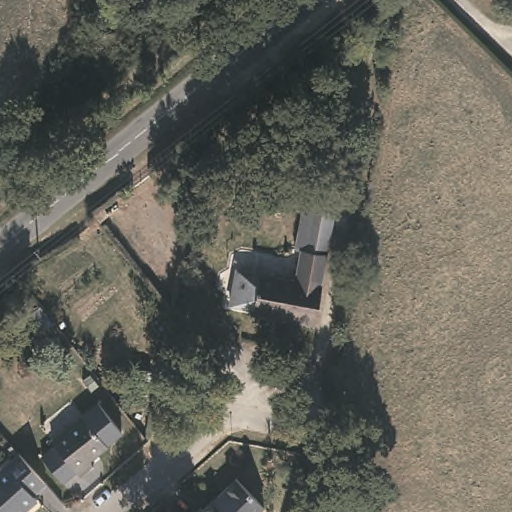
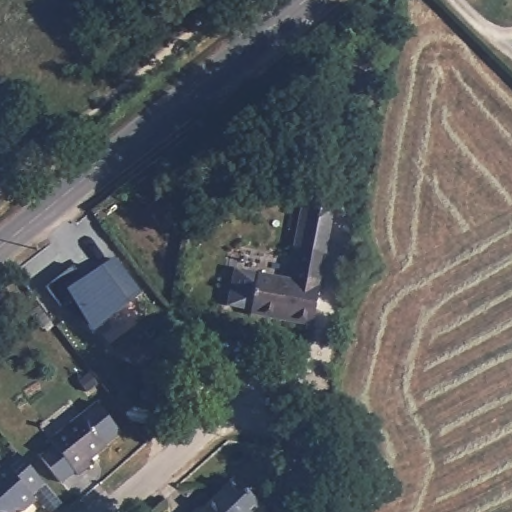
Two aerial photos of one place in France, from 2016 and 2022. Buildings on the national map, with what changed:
unchanged [(212,183),(210,196),(196,195),(198,180),(212,183)]
unchanged [(256,308),(236,305),(242,270),(299,280),(306,250),(298,249),(308,200),(340,206),(331,256),(319,321),(318,326),(282,319),(255,315),(256,308)]
new [(74,263),(85,279),(100,268),(116,255),(143,290),(128,303),(96,331),(73,297),(60,305),(46,286),(74,263)]
unchanged [(152,372),(144,410),(127,405),(135,368),(152,372)]
unchanged [(91,465),(77,475),(51,440),(81,416),(97,403),(122,433),(106,446),(88,461),(91,465)]
new [(74,471),(61,482),(40,455),(54,445),(74,471)]
unchanged [(32,495),(36,499),(23,510),(21,507),(16,512),(0,512),(0,469),(18,453),(45,483),(32,495)]
unchanged [(264,507),(259,512),(195,512),(200,507),(202,510),(235,480),(264,507)]

